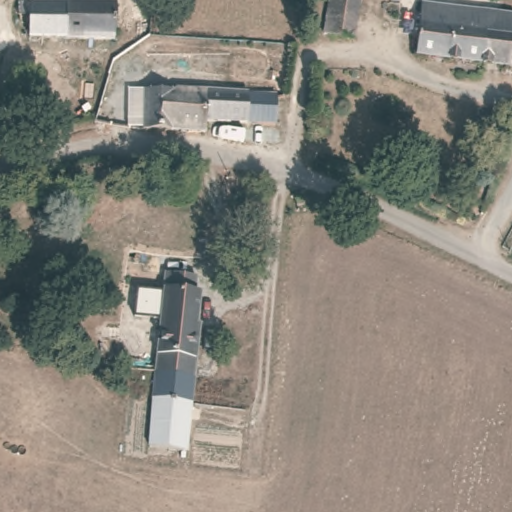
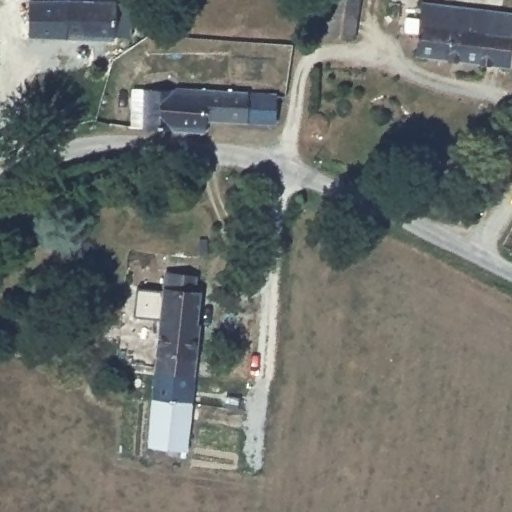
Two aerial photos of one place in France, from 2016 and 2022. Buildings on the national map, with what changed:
unchanged [(67,4),(67,0),(115,0),(115,40),(28,37),(28,16),(12,15),(12,3),(67,4)]
unchanged [(318,39),(323,0),(337,0),(356,2),(350,42),(318,39)]
unchanged [(422,55),(426,3),(492,9),(490,27),(512,29),(512,67),(422,55)]
unchanged [(252,111),(252,116),(213,114),(212,130),(149,127),(151,87),(156,88),(181,89),(181,85),(230,86),(252,87),(252,92),(281,93),(281,112),(252,111)]
unchanged [(316,134),(307,136),(308,107),(316,110),(322,116),(325,121),(325,127),(316,134)]
unchanged [(152,400),(154,384),(155,371),(160,321),(129,318),(132,286),(162,288),(165,270),(197,272),(197,290),(199,291),(197,323),(200,323),(195,376),(193,389),(192,404),(187,452),(149,447),(152,400)]

